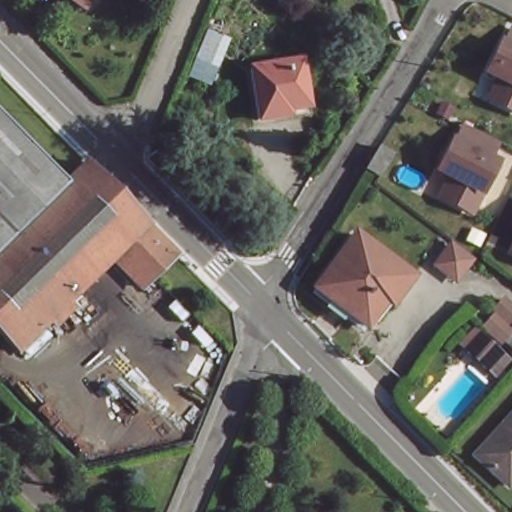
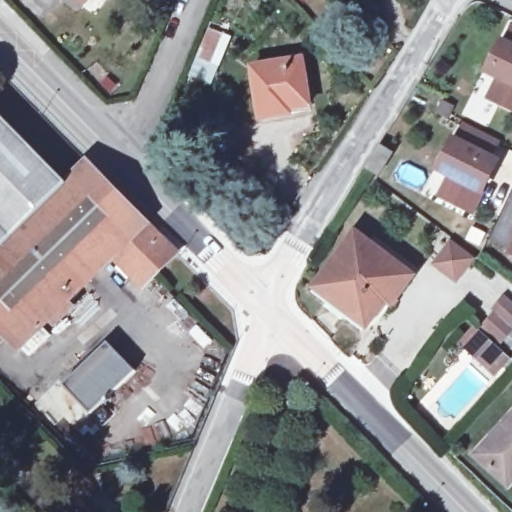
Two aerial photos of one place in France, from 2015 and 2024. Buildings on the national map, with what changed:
unchanged [(83,3),(77,0),(85,0),(83,3)]
unchanged [(509,83),(487,73),(501,44),(504,45),(511,31),(512,32),(512,110),(499,104),(509,83)]
unchanged [(309,105),(279,111),(279,114),(257,117),(248,69),(301,60),(309,105)]
unchanged [(85,158),(175,249),(141,283),(111,254),(64,301),(68,307),(50,324),(45,320),(14,350),(0,336),(0,118),(63,180),(85,158)]
unchanged [(492,140),(478,168),(486,172),(468,207),(447,197),(457,177),(435,165),(449,136),(453,138),(459,124),(492,140)]
unchanged [(394,152),(379,175),(366,165),(381,141),(394,152)]
unchanged [(504,248),(512,230),(512,252),(504,248)]
unchanged [(411,273),(392,302),(384,297),(364,322),(313,285),(354,231),(411,273)]
unchanged [(472,258),(457,278),(437,263),(452,243),(472,258)]
unchanged [(501,350),(488,365),(472,350),(485,336),(501,350)]
new [(105,342),(135,372),(89,416),(61,386),(105,342)]
unchanged [(507,487),(474,457),(512,414),(512,481),(507,487)]

